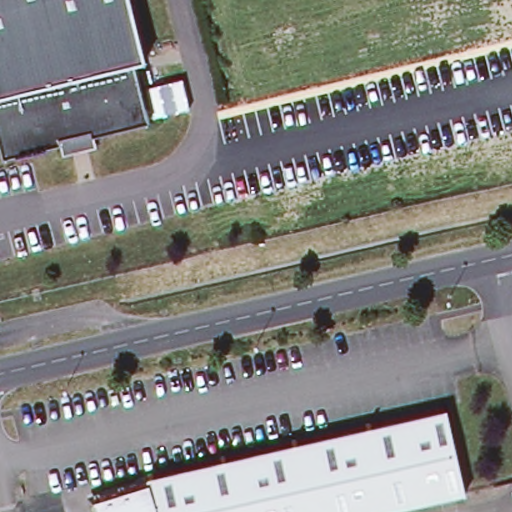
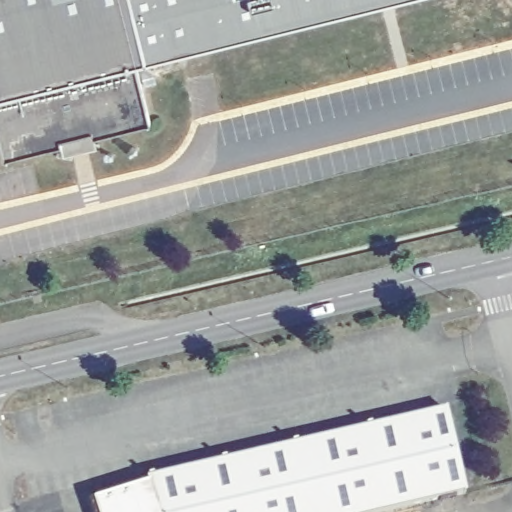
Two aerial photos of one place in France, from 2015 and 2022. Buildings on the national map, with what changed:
unchanged [(138,65),(153,123),(95,137),(87,143),(73,146),(64,145),(8,159),(0,127),(0,0),(134,0),(150,62),(138,65)]
new [(134,0),(389,0),(149,60),(134,0)]
unchanged [(468,493),(383,512),(95,512),(90,497),(137,482),(251,456),(448,410),(468,493)]

